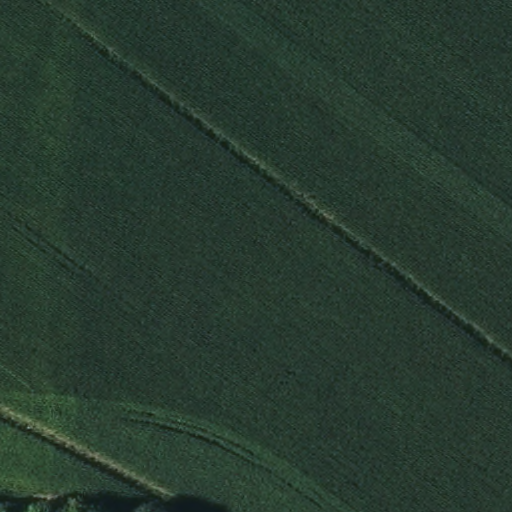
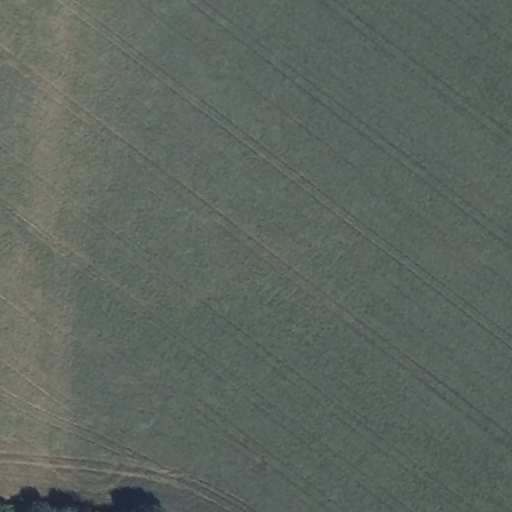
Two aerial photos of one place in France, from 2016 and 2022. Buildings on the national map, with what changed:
[]

